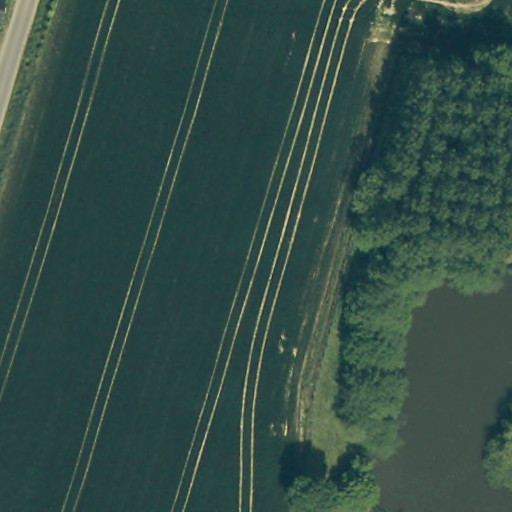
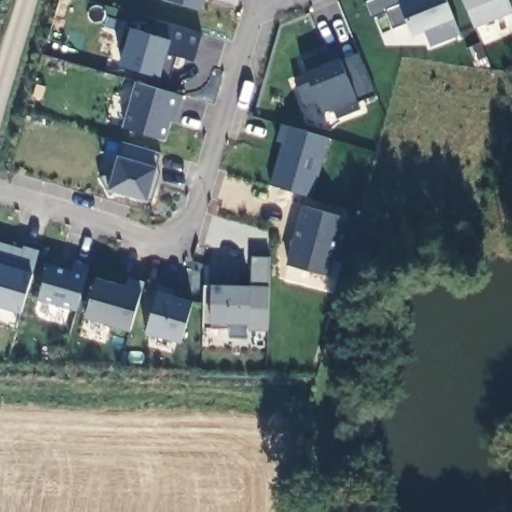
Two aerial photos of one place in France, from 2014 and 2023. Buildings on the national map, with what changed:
new [(169,0),(206,0),(203,10),(169,0)]
new [(427,31),(411,38),(406,21),(393,28),(387,12),(371,19),(365,2),(370,0),(446,0),(460,34),(432,47),(427,31)]
new [(475,29),(467,10),(463,0),(507,0),(512,13),(475,29)]
new [(194,62),(177,56),(170,80),(160,77),(120,66),(124,51),(120,50),(125,28),(131,30),(152,35),(157,21),(201,34),(194,62)]
new [(376,94),(357,100),(360,110),(337,119),(335,109),(323,115),(317,101),(305,106),(293,79),(307,72),(302,60),(337,47),(342,60),(360,54),(376,94)]
new [(176,122),(171,121),(166,140),(122,126),(135,83),(184,96),(176,122)]
new [(313,199),(270,185),(281,142),(277,141),(282,125),(288,127),(330,139),(313,199)]
new [(157,166),(155,172),(160,175),(152,203),(148,201),(116,192),(110,195),(100,178),(114,170),(118,156),(124,143),(160,154),(157,166)]
new [(345,219),(330,276),(287,264),(302,205),(345,219)]
new [(21,314),(0,308),(0,242),(22,249),(24,245),(40,250),(33,273),(21,314)]
new [(268,331),(250,331),(250,325),(229,324),(228,328),(204,328),(205,286),(212,285),(251,285),(252,257),(269,258),(268,331)]
new [(76,312),(38,301),(50,265),(71,271),(75,260),(90,265),(76,312)]
new [(130,331),(86,318),(98,280),(125,287),(129,277),(145,281),(142,292),(130,331)]
new [(181,343),(147,333),(159,293),(194,301),(181,343)]

